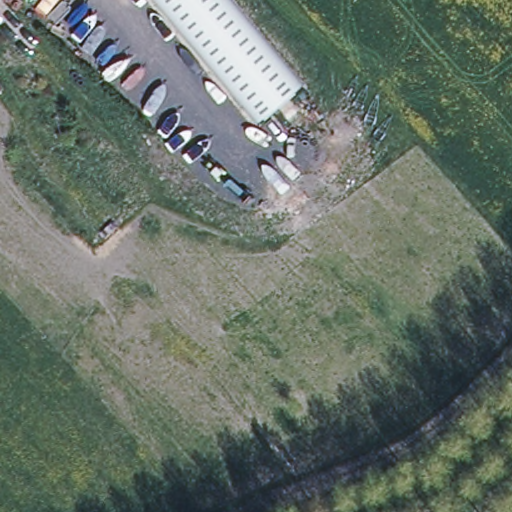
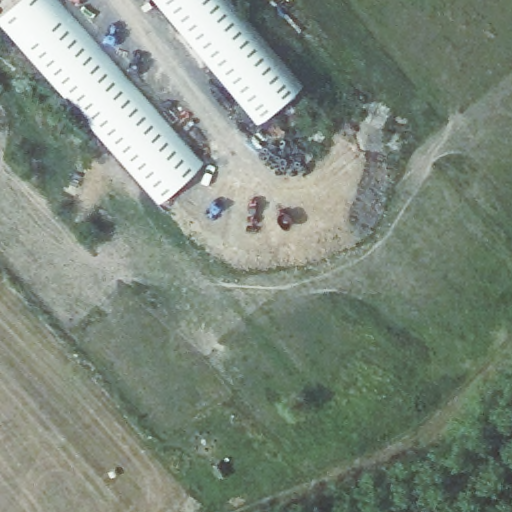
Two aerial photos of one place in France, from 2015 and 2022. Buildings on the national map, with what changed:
new [(204,162),(159,201),(0,25),(0,16),(19,0),(59,0),(204,162)]
unchanged [(298,87),(258,121),(154,0),(227,0),(298,87)]

